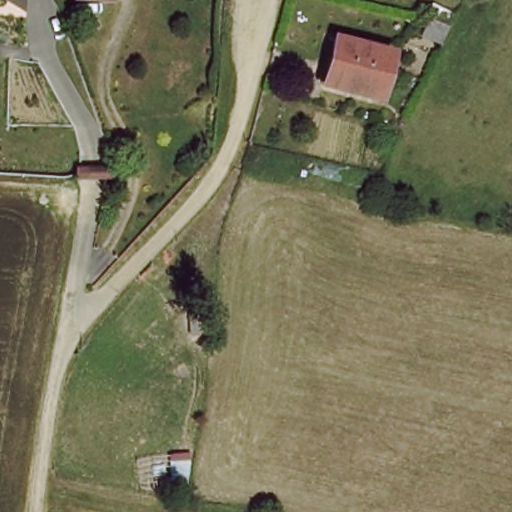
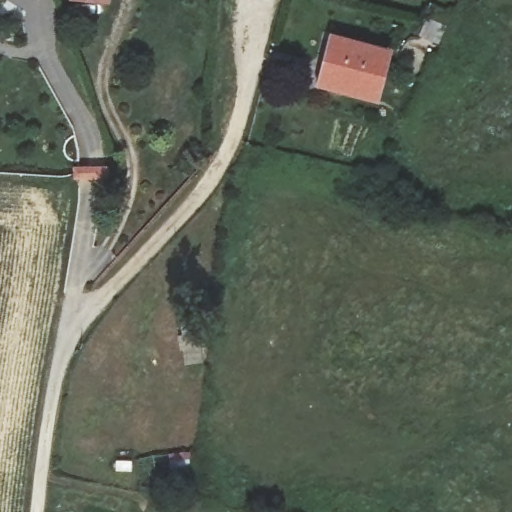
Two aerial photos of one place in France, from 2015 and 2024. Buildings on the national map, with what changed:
unchanged [(389,55),(374,102),(317,85),(332,37),(389,55)]

